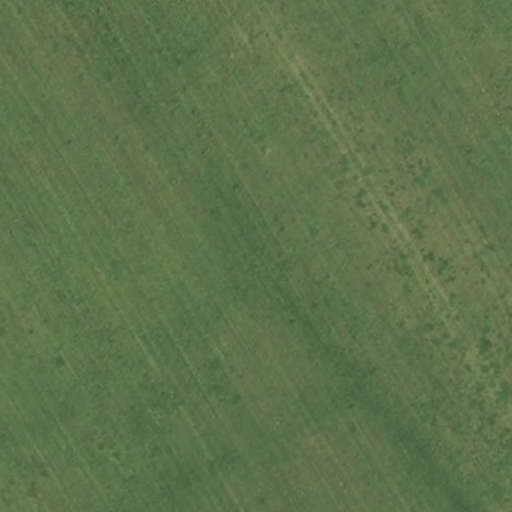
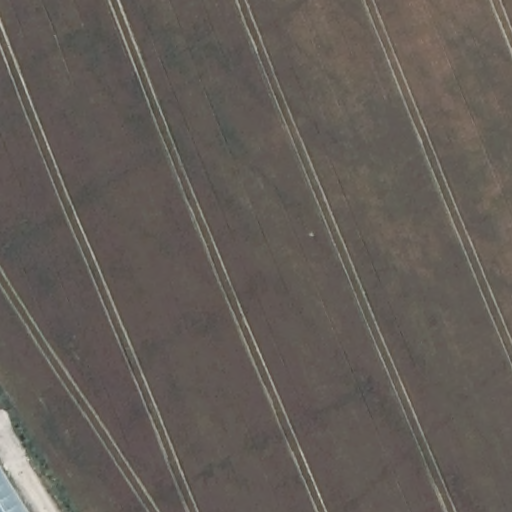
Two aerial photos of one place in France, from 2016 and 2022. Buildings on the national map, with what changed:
new [(26,512),(0,512),(0,471),(26,512)]

